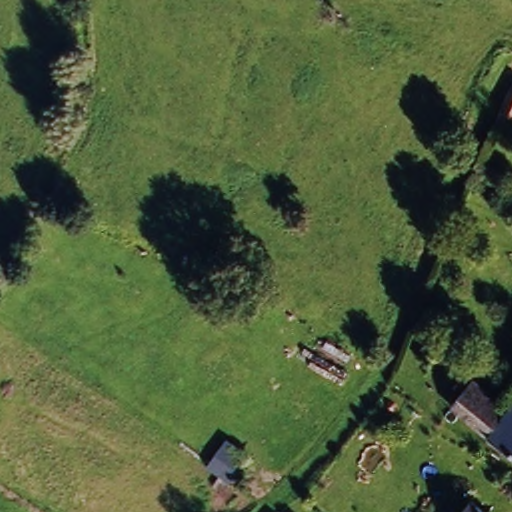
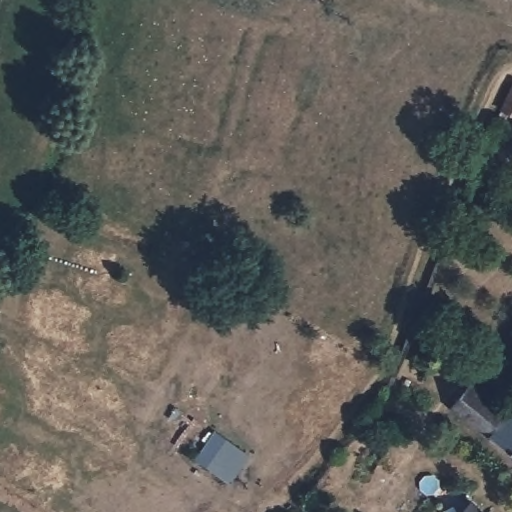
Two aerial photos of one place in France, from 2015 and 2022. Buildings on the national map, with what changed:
unchanged [(512,80),(512,116),(496,108),(512,80)]
unchanged [(485,440),(448,411),(465,389),(501,417),(485,440)]
unchanged [(501,417),(512,402),(512,461),(485,440),(501,417)]
unchanged [(484,512),(467,512),(475,503),(484,512)]

